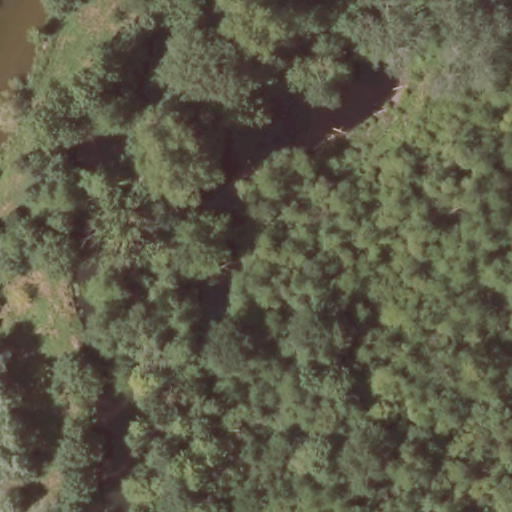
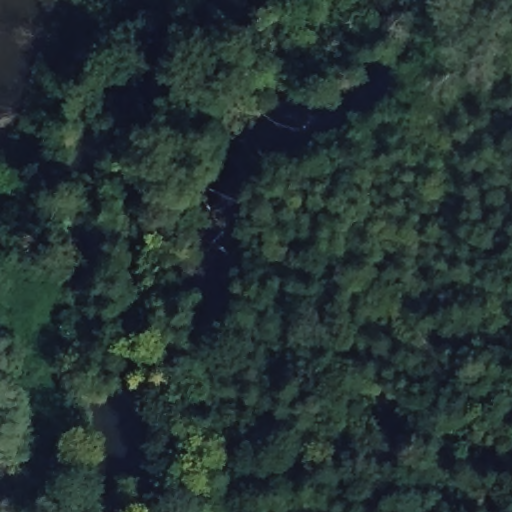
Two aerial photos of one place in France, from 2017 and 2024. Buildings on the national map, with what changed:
unchanged [(261,76),(241,84),(235,70),(256,62),(261,76)]

